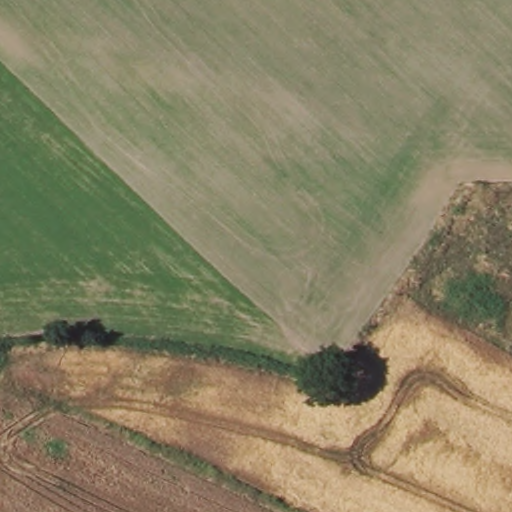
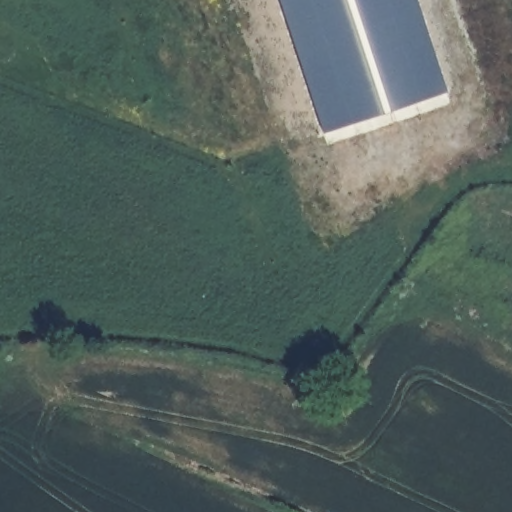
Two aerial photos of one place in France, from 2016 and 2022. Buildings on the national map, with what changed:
new [(447,85),(324,128),(282,0),(419,0),(447,85)]

